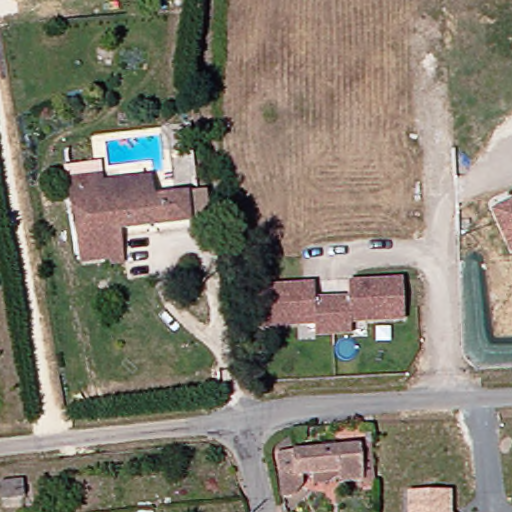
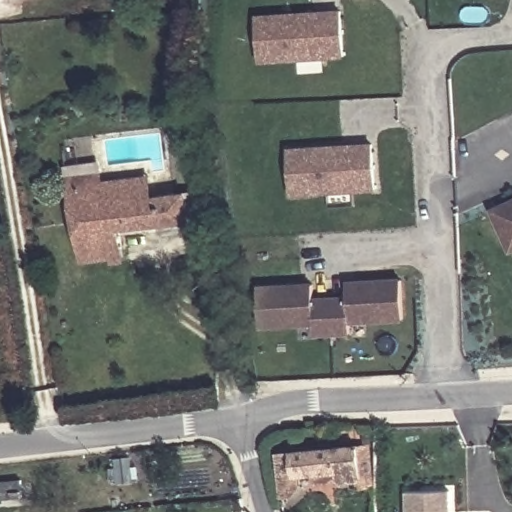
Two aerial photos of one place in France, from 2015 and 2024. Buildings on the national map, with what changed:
new [(340,14),(343,59),(260,65),(257,20),(340,14)]
new [(372,147),(375,192),(292,198),(289,153),(372,147)]
unchanged [(81,255),(73,188),(71,176),(98,173),(100,184),(116,182),(151,177),(153,197),(188,193),(206,190),(209,220),(120,231),(123,262),(113,263),(112,258),(82,262),(81,255)]
unchanged [(498,206),(512,200),(512,238),(498,206)]
unchanged [(402,319),(348,321),(349,332),(313,334),(312,323),(259,325),(257,286),(311,284),(312,299),(346,297),(345,282),(400,279),(402,319)]
unchanged [(346,471),(302,475),(304,489),(296,498),(290,499),(284,454),(365,446),(378,445),(381,479),(368,480),(347,483),(346,471)]
unchanged [(4,500),(2,480),(25,478),(27,498),(4,500)]
unchanged [(450,491),(450,512),(407,512),(407,492),(450,491)]
unchanged [(378,506),(367,507),(365,494),(377,493),(378,506)]

